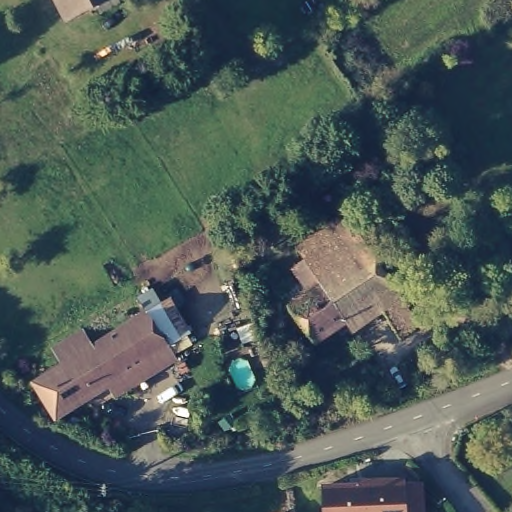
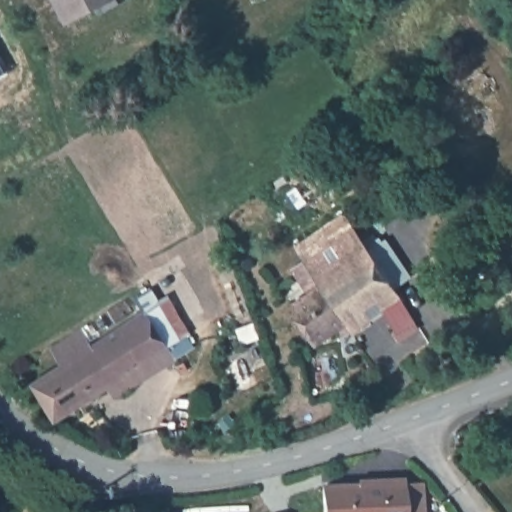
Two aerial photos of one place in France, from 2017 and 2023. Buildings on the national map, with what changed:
unchanged [(58,0),(112,0),(65,17),(58,0)]
unchanged [(444,272),(404,300),(394,288),(319,344),(292,306),(311,292),(294,268),(304,262),(317,276),(325,270),(304,239),(380,186),(444,272)]
unchanged [(60,415),(35,380),(49,371),(44,363),(56,357),(61,364),(67,359),(54,339),(87,319),(92,325),(141,294),(171,344),(60,415)]
unchanged [(334,484),(332,477),(352,477),(352,483),(386,481),(403,480),(405,512),(307,512),(307,486),(334,484)]

